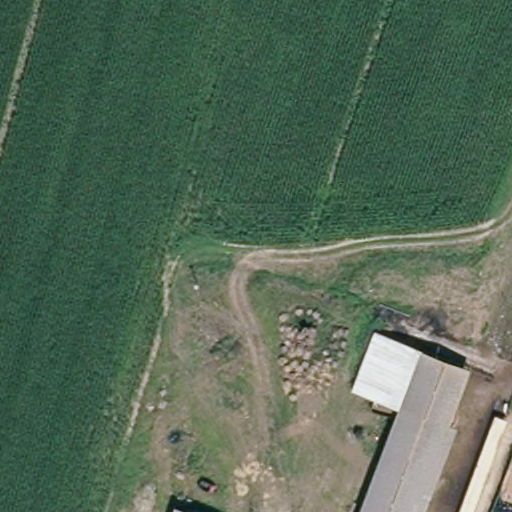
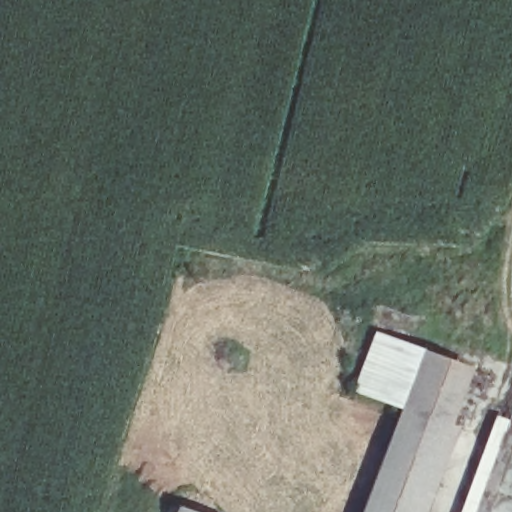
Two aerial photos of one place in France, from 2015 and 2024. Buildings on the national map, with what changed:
unchanged [(346,392),(362,335),(458,362),(416,512),(367,512),(394,406),(346,392)]
unchanged [(453,512),(492,414),(507,422),(472,512),(453,512)]
unchanged [(192,512),(172,512),(174,506),(192,512)]

